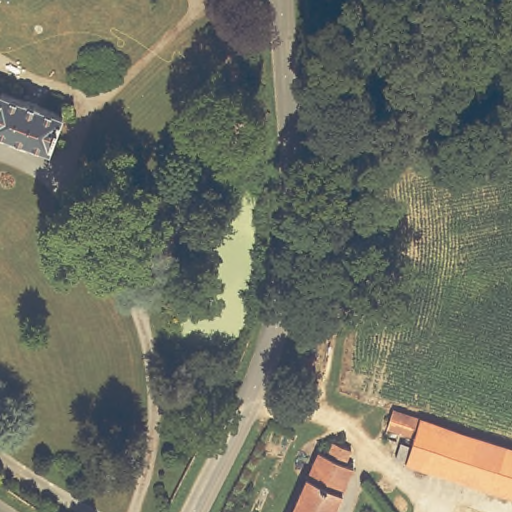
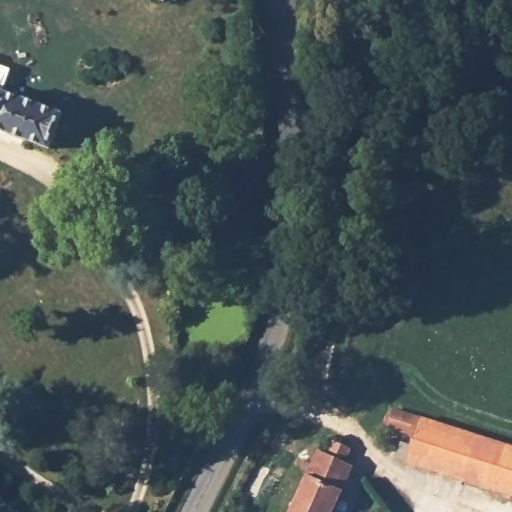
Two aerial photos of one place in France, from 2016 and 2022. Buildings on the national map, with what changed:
unchanged [(0,124),(0,84),(66,113),(55,144),(0,124)]
unchanged [(407,425),(382,416),(385,407),(387,401),(512,440),(512,489),(398,455),(407,425)]
unchanged [(354,442),(348,456),(360,462),(339,512),(290,512),(318,445),(332,452),(339,436),(354,442)]

